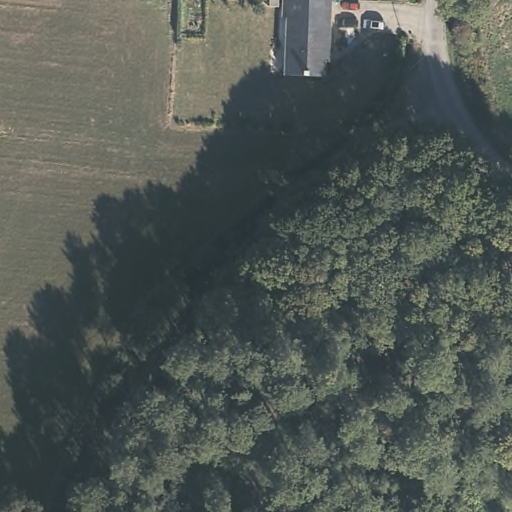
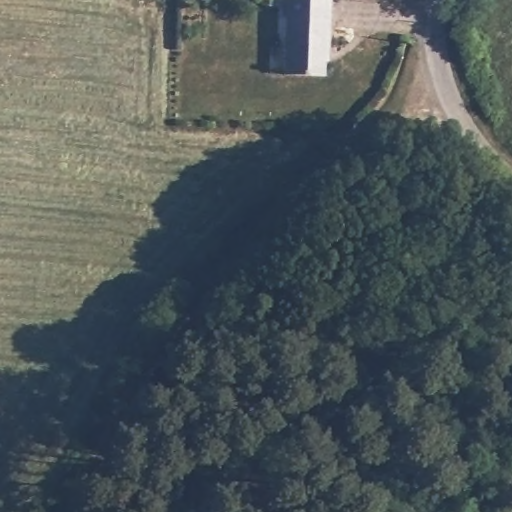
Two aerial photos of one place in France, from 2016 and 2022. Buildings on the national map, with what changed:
unchanged [(328,52),(324,52),(323,76),(283,75),(286,0),(330,0),(328,52)]

